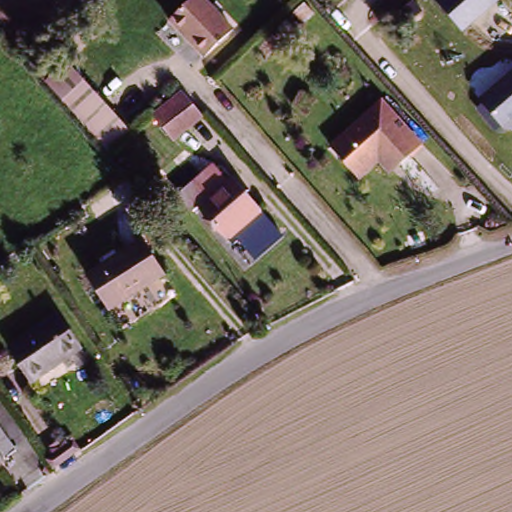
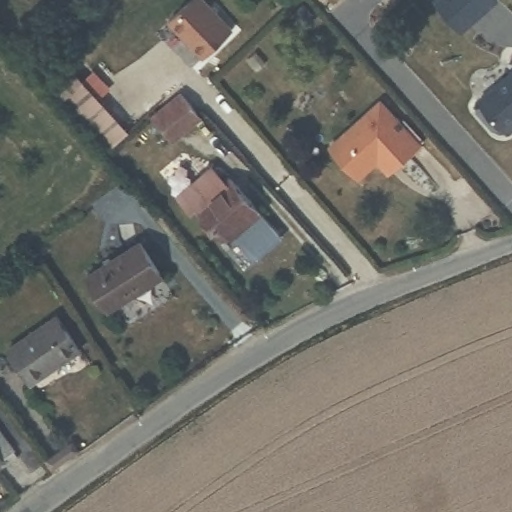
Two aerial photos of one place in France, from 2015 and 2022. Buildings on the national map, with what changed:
unchanged [(205,54),(171,14),(187,0),(211,0),(235,26),(205,54)]
unchanged [(439,3),(442,0),(496,0),(464,31),(439,3)]
unchanged [(75,69),(115,114),(92,133),(52,89),(75,69)]
unchanged [(512,76),(512,133),(506,132),(481,105),(512,76)]
unchanged [(181,92),(201,114),(175,137),(155,115),(181,92)]
unchanged [(379,159),(360,176),(342,156),(345,142),(339,136),(381,97),(424,144),(402,164),(392,172),(379,159)]
unchanged [(272,220),(237,249),(209,216),(203,220),(194,209),(227,180),(237,191),(242,187),(272,220)]
unchanged [(160,280),(102,309),(82,272),(142,243),(160,280)]
unchanged [(53,317),(77,353),(32,382),(7,347),(53,317)]
unchanged [(0,458),(0,425),(16,447),(0,458)]

